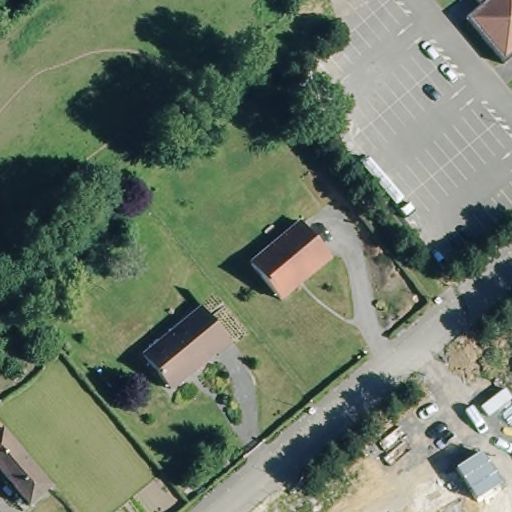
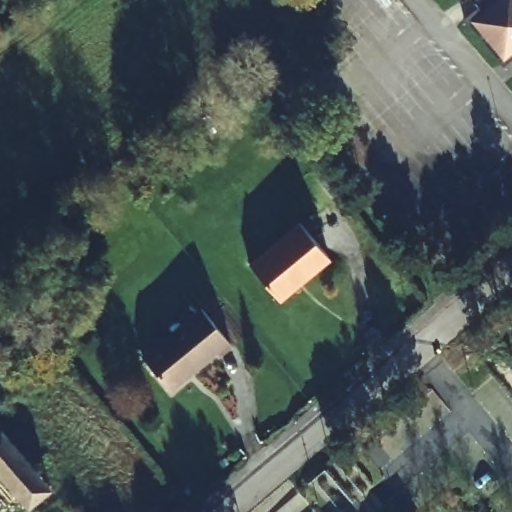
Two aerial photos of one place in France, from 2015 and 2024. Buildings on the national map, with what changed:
unchanged [(505,61),(465,15),(480,2),(478,0),(512,0),(512,55),(505,61)]
unchanged [(329,255),(280,296),(250,261),(300,220),(329,255)]
unchanged [(233,345),(219,356),(216,353),(171,390),(143,356),(202,308),(233,345)]
unchanged [(27,508),(0,477),(0,432),(56,498),(41,512),(23,512),(27,508)]

